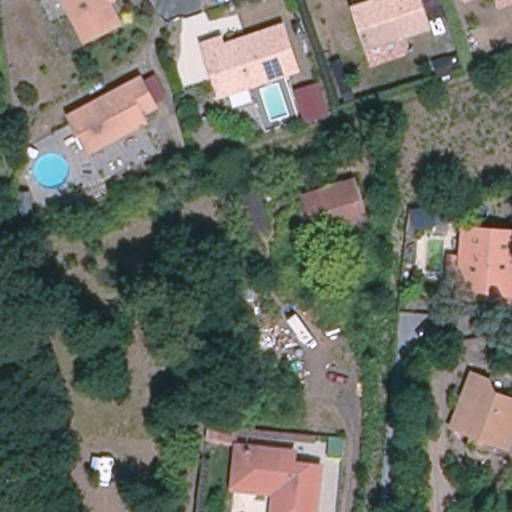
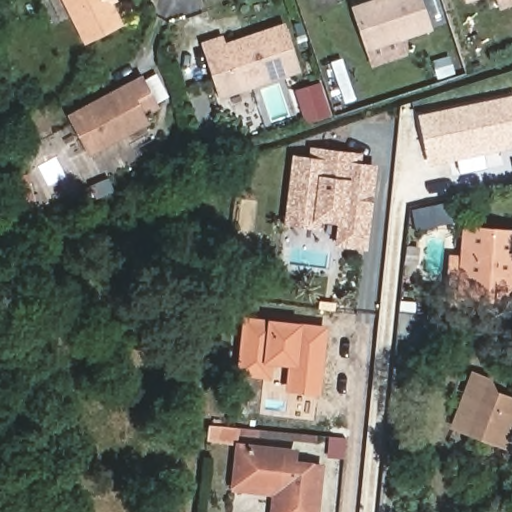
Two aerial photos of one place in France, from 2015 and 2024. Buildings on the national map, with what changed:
unchanged [(120,23),(86,41),(66,0),(109,0),(120,23)]
unchanged [(431,28),(367,49),(354,8),(380,0),(422,0),(431,28)]
unchanged [(467,1),(467,0),(470,0),(467,1)]
unchanged [(284,26),(299,70),(221,97),(204,44),(222,38),(224,46),(284,26)]
unchanged [(158,107),(143,115),(147,122),(89,153),(70,117),(143,78),(158,107)]
new [(321,86),(330,115),(310,122),(301,92),(321,86)]
new [(417,115),(512,95),(512,148),(428,166),(417,115)]
new [(336,223),(320,222),(319,229),(283,226),(292,154),(307,155),(308,147),(362,152),(362,162),(378,164),(366,249),(334,246),(336,223)]
demolished [(369,219),(309,238),(296,199),(357,179),(369,219)]
unchanged [(452,202),(456,219),(419,227),(415,210),(452,202)]
unchanged [(512,292),(460,287),(465,228),(512,232),(512,292)]
new [(285,391),(288,365),(273,364),(271,378),(235,374),(242,316),(268,318),(302,323),(327,326),(320,393),(285,391)]
unchanged [(512,441),(509,448),(454,427),(474,374),(489,380),(494,392),(512,399),(512,441)]
unchanged [(321,472),(317,512),(278,512),(279,496),(238,490),(242,452),(295,458),(294,469),(321,472)]

